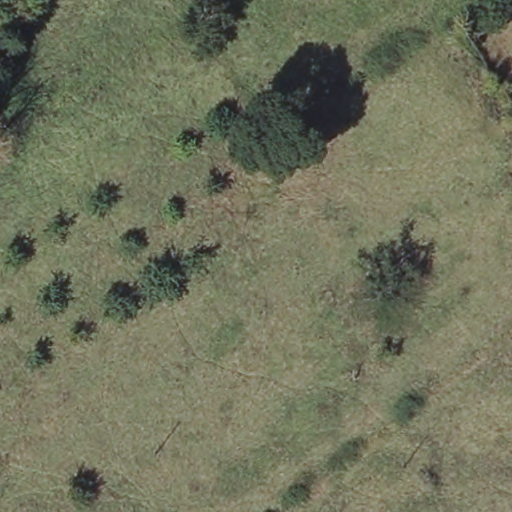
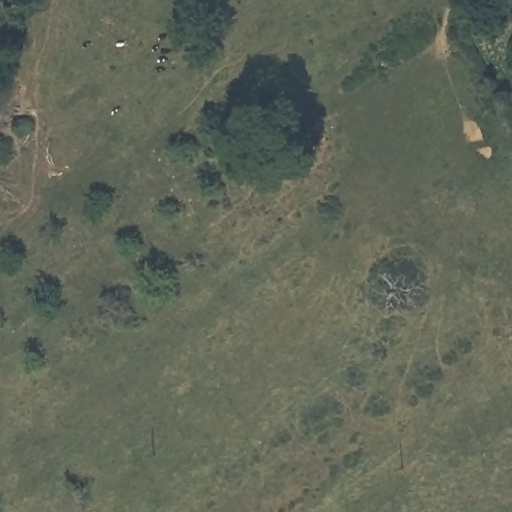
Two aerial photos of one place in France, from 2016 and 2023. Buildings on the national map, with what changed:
[]

